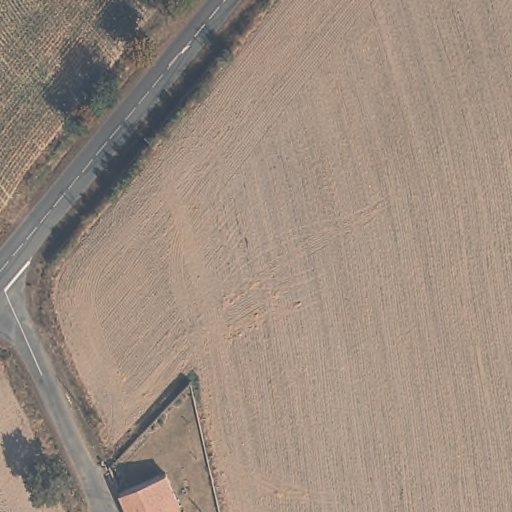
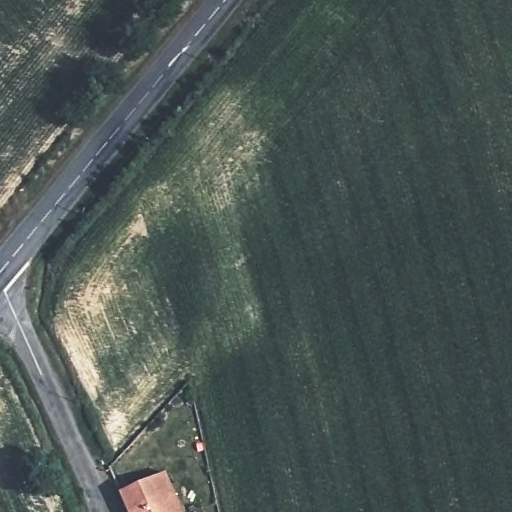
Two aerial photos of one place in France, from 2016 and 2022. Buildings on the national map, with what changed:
unchanged [(117,497),(163,478),(179,512),(124,512),(117,497)]

